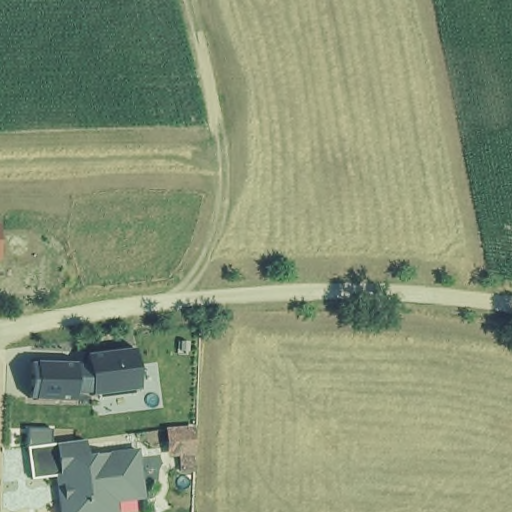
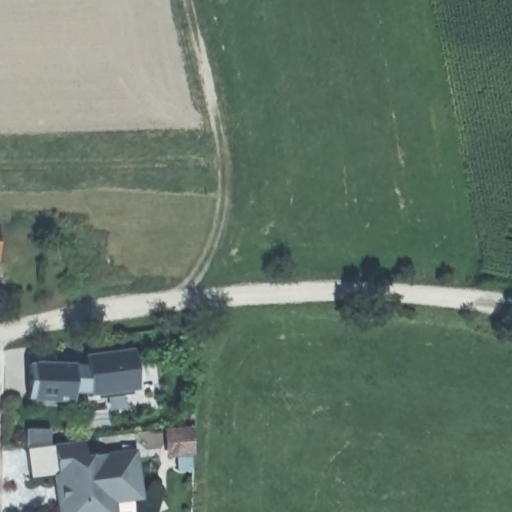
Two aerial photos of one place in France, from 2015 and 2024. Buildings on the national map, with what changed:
unchanged [(139,390),(89,397),(88,384),(71,383),(71,402),(23,401),(24,362),(84,364),(84,354),(132,348),(139,390)]
unchanged [(112,503),(113,512),(55,512),(51,476),(24,481),(20,448),(82,439),(85,453),(133,448),(142,498),(112,503)]

